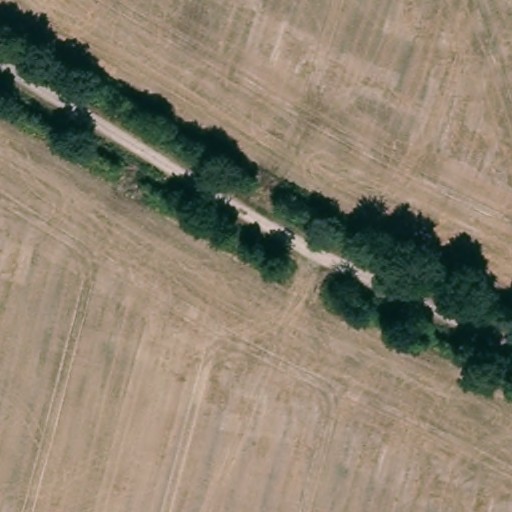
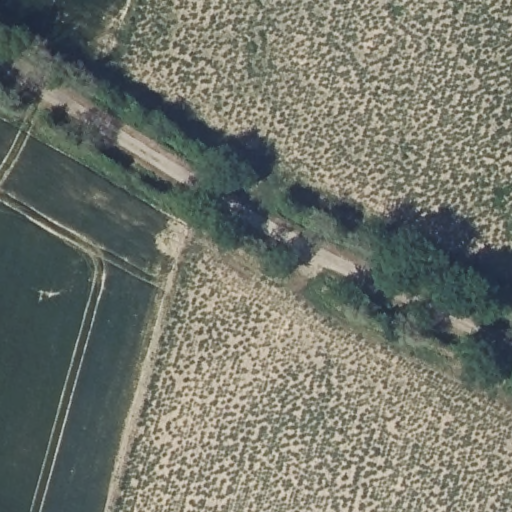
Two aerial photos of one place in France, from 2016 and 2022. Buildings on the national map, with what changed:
[]

